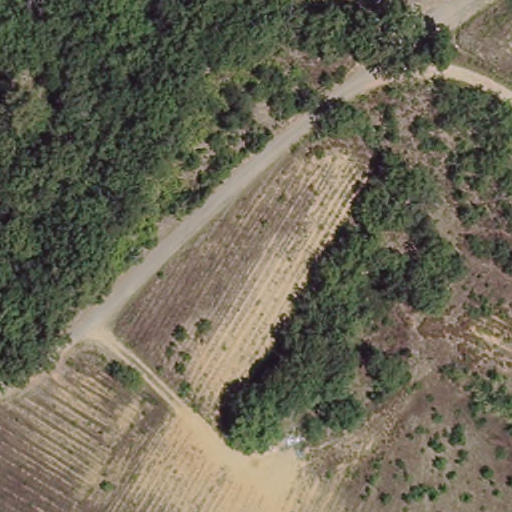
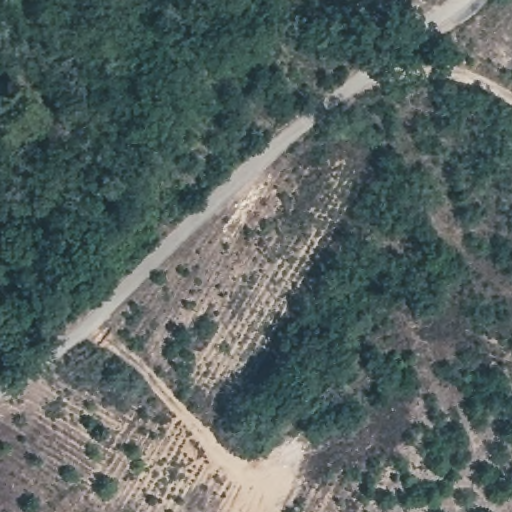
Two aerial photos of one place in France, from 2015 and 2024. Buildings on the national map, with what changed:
[]

